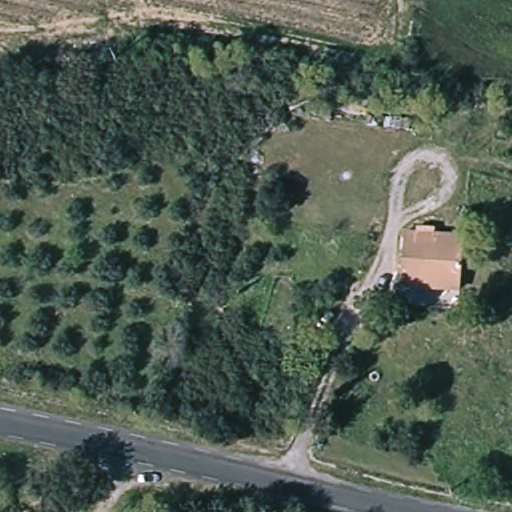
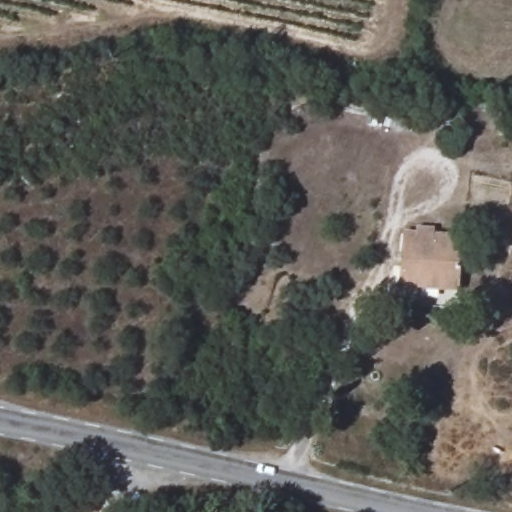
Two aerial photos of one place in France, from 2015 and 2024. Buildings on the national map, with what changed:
unchanged [(399,235),(454,234),(456,271),(456,287),(398,291),(398,273),(399,235)]

